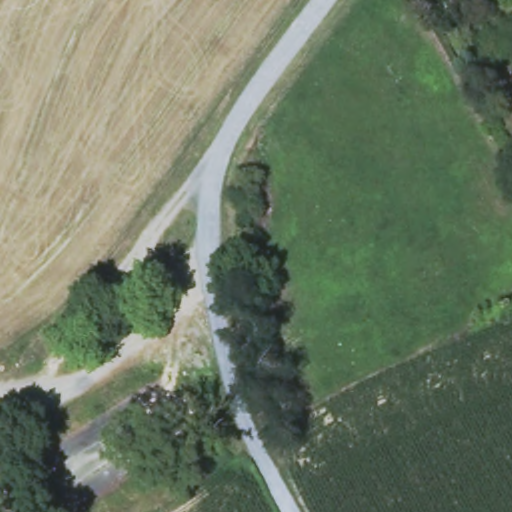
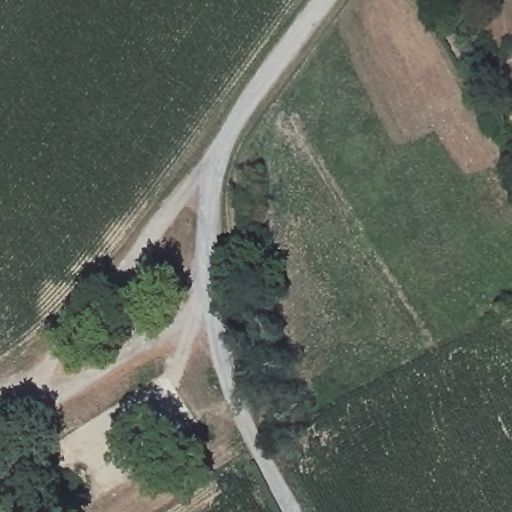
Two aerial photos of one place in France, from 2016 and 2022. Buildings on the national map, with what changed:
unchanged [(170,359),(190,364),(189,373),(169,368),(170,359)]

